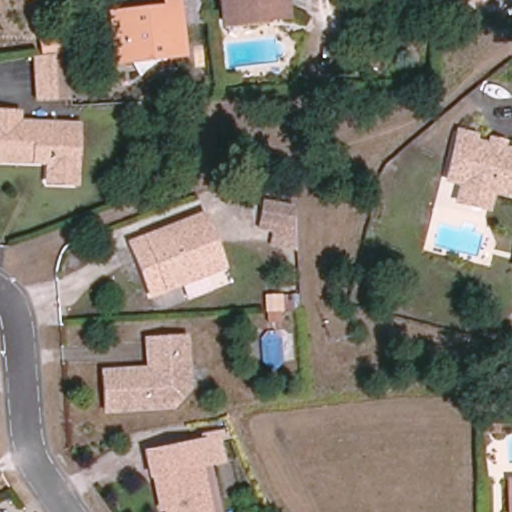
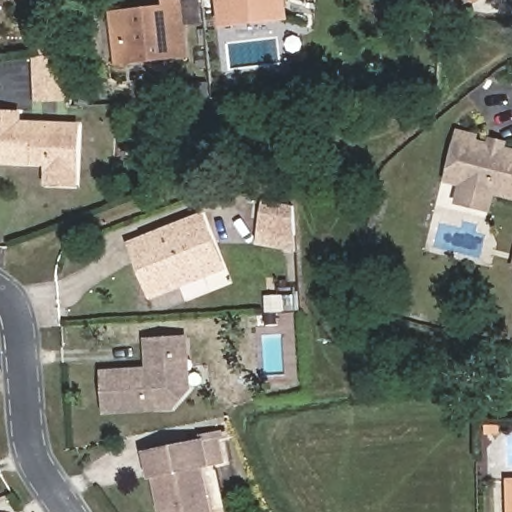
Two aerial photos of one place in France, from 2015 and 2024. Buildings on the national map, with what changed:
unchanged [(114,28),(122,27),(120,13),(166,9),(165,2),(179,0),(183,26),(172,27),(176,57),(125,63),(118,63),(114,28)]
unchanged [(224,24),(221,0),(285,0),(286,18),(270,19),(244,22),(224,24)]
unchanged [(41,96),(39,57),(44,56),(42,40),(75,35),(68,53),(71,95),(41,96)]
unchanged [(48,165),(48,159),(48,153),(35,153),(35,159),(0,157),(0,109),(19,109),(19,119),(78,121),(77,166),(77,180),(47,179),(48,165)]
unchanged [(468,190),(465,182),(447,177),(455,143),(458,128),(477,132),(476,137),(490,141),(491,135),(506,139),(504,144),(512,147),(512,194),(492,189),(484,195),(468,190)]
unchanged [(296,207),(296,249),(270,246),(272,233),(260,231),(268,201),(296,207)]
unchanged [(203,216),(225,269),(167,291),(151,298),(130,244),(203,216)]
unchanged [(147,342),(186,339),(189,389),(172,408),(106,413),(104,374),(149,371),(147,342)]
unchanged [(203,443),(208,466),(201,468),(210,512),(166,512),(165,511),(161,511),(154,477),(151,478),(146,454),(203,443)]
unchanged [(512,481),(512,512),(510,512),(509,481),(512,481)]

